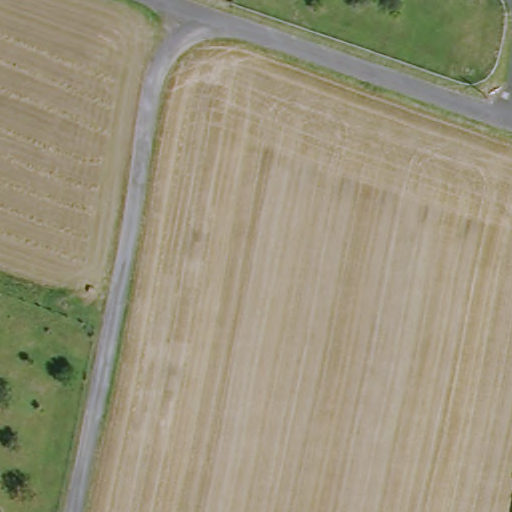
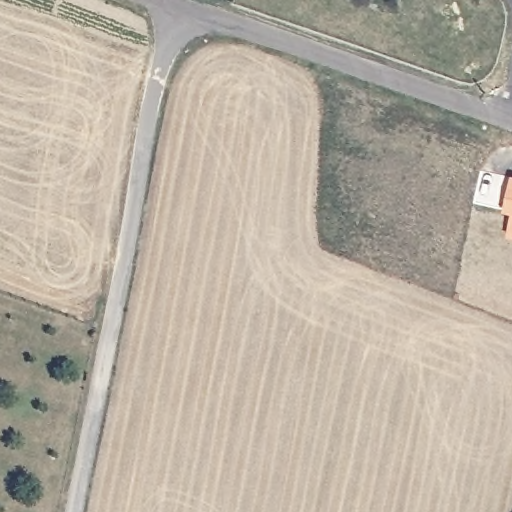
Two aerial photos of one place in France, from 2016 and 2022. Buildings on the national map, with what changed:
new [(510,176),(512,177),(512,233),(506,232),(511,209),(502,207),(510,176)]

